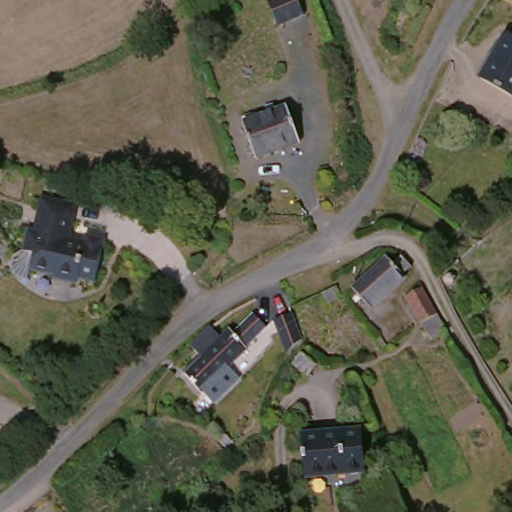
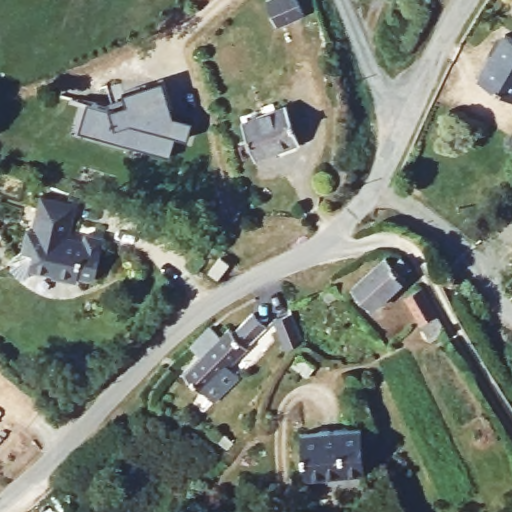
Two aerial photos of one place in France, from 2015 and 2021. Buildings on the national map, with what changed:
unchanged [(283,22),(274,0),(305,0),(309,11),(283,22)]
unchanged [(512,38),(512,98),(481,80),(506,35),(512,38)]
new [(86,101),(111,106),(126,102),(123,91),(161,79),(172,115),(191,121),(186,139),(174,135),(169,156),(79,129),(86,101)]
unchanged [(304,139),(261,154),(248,117),(291,101),(304,139)]
unchanged [(44,229),(53,195),(86,204),(78,240),(93,244),(96,235),(113,239),(103,281),(86,277),(84,281),(60,275),(61,272),(38,266),(36,275),(26,272),(21,264),(24,254),(32,249),(38,228),(44,229)]
unchanged [(394,265),(402,257),(403,257),(413,270),(404,277),(406,279),(371,312),(352,291),(387,258),(394,265)]
unchanged [(423,286),(443,320),(449,329),(448,330),(449,333),(444,336),(441,332),(431,337),(430,337),(406,293),(422,285),(423,286)]
unchanged [(341,299),(327,306),(322,295),(337,288),(341,299)]
unchanged [(224,335),(229,340),(248,320),(262,335),(242,354),(244,356),(224,375),(234,385),(209,410),(198,400),(197,401),(179,380),(196,364),(186,354),(189,351),(206,334),(215,343),(224,335)]
unchanged [(269,330),(286,324),(289,330),(297,347),(281,361),(281,363),(269,330)]
unchanged [(316,367),(306,378),(293,367),(302,356),(316,367)]
unchanged [(366,476),(306,482),(301,435),(361,429),(366,476)]

